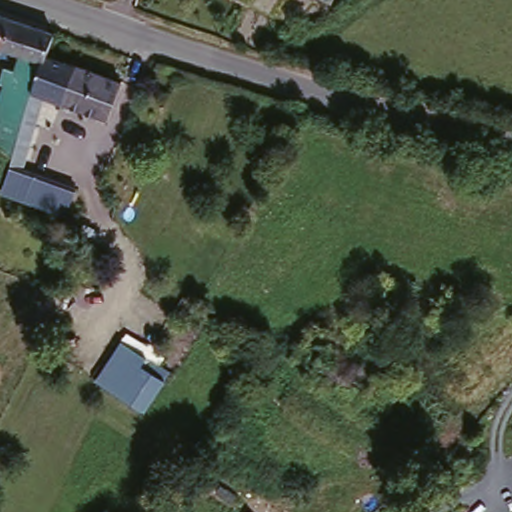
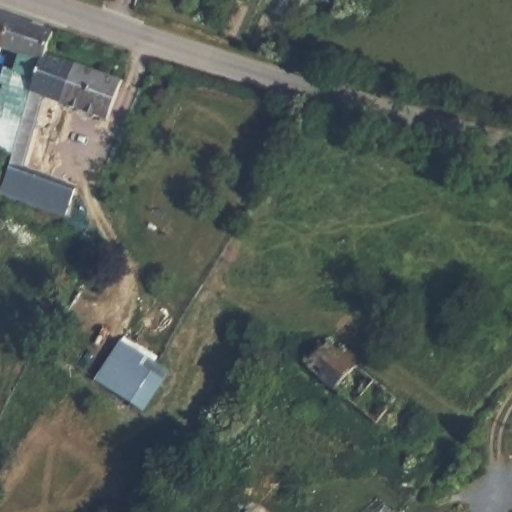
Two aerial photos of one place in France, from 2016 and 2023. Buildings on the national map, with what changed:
unchanged [(53,29),(42,60),(0,45),(0,11),(53,29)]
unchanged [(26,79),(29,67),(38,70),(42,60),(119,87),(105,124),(29,96),(35,80),(26,79)]
unchanged [(79,183),(69,215),(1,193),(29,96),(45,102),(26,164),(79,183)]
unchanged [(3,161),(0,173),(0,158),(3,161)]
unchanged [(306,373),(331,340),(379,380),(350,407),(306,373)]
unchanged [(116,348),(165,381),(142,415),(94,381),(116,348)]

